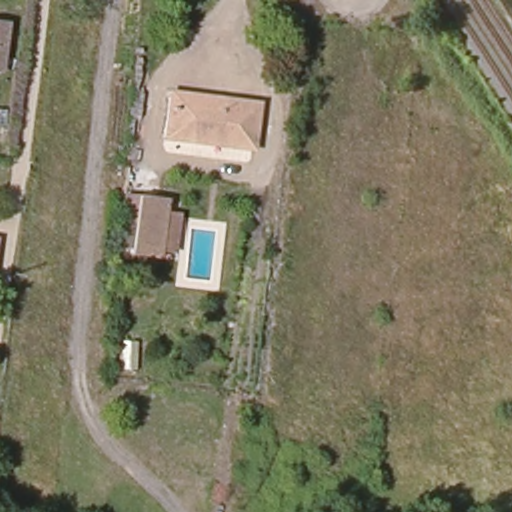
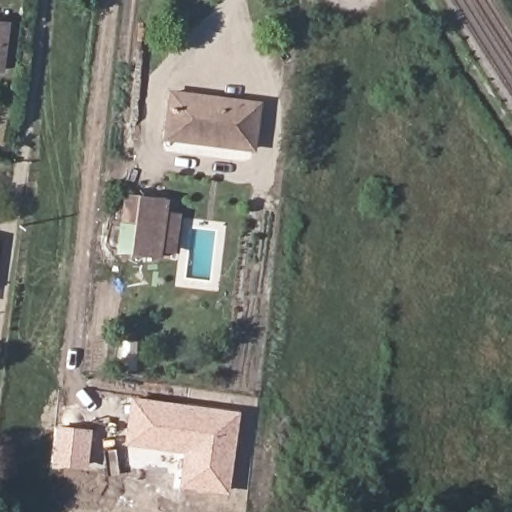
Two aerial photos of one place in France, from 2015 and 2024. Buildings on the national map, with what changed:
unchanged [(0,51),(0,24),(4,25),(0,51)]
unchanged [(254,146),(167,135),(171,91),(259,101),(254,146)]
unchanged [(124,225),(126,197),(139,199),(140,197),(167,200),(165,217),(179,219),(176,251),(161,249),(160,259),(134,256),(121,255),(124,225)]
new [(228,493),(177,486),(182,453),(123,445),(130,395),(240,410),(228,493)]
new [(86,467),(50,464),(55,424),(91,429),(86,467)]

